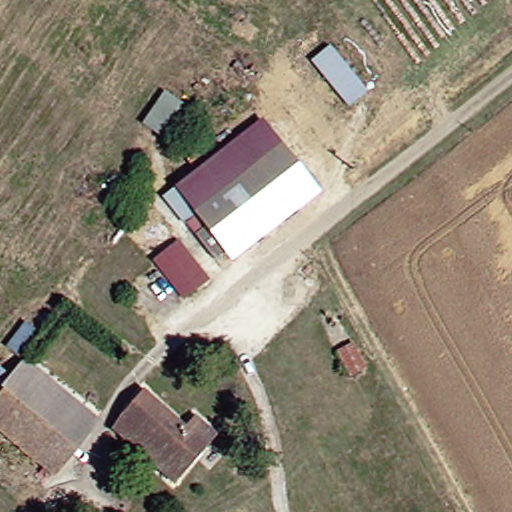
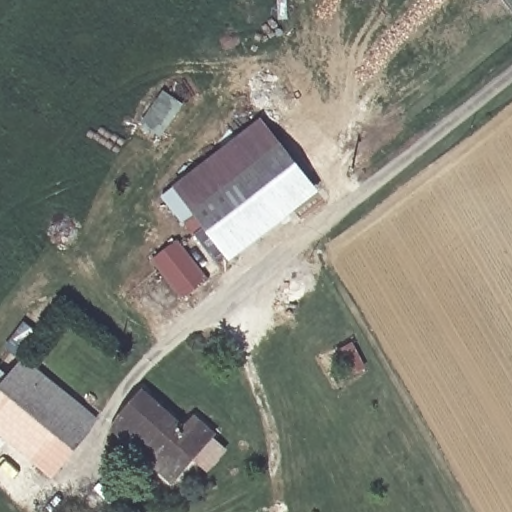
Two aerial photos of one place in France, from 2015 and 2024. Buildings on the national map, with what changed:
demolished [(306,61),(329,46),(365,93),(344,106),(306,61)]
unchanged [(161,91),(183,104),(160,135),(137,124),(161,91)]
unchanged [(315,190),(227,259),(173,190),(258,119),(315,190)]
unchanged [(185,243),(214,277),(187,301),(155,266),(185,243)]
unchanged [(20,444),(7,459),(0,453),(0,408),(33,368),(92,410),(100,416),(89,431),(80,442),(56,475),(37,460),(20,444)]
unchanged [(185,484),(141,451),(114,430),(122,414),(143,388),(193,427),(202,417),(226,436),(185,484)]

